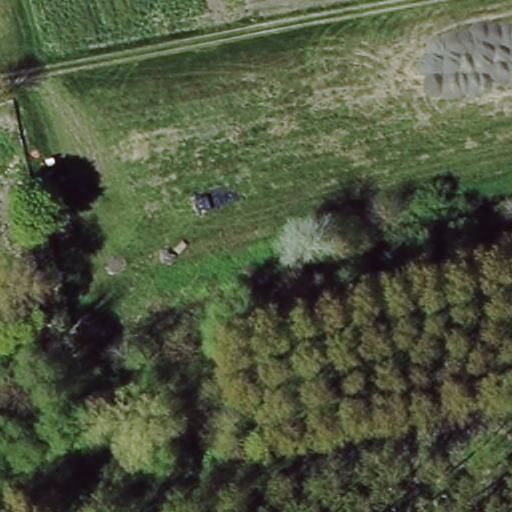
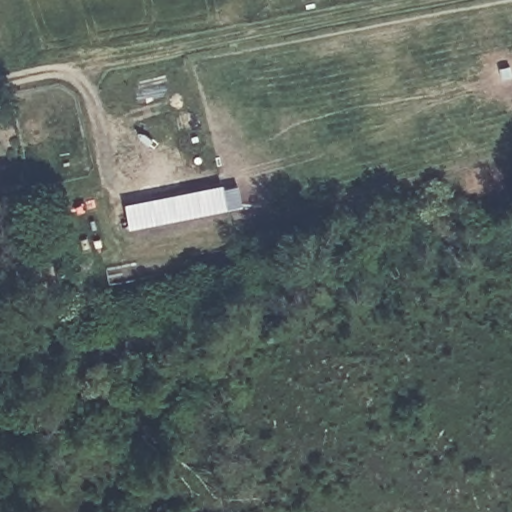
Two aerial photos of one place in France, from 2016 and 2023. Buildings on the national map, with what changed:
new [(222,181),(223,187),(237,184),(242,202),(227,207),(130,226),(125,202),(222,181)]

